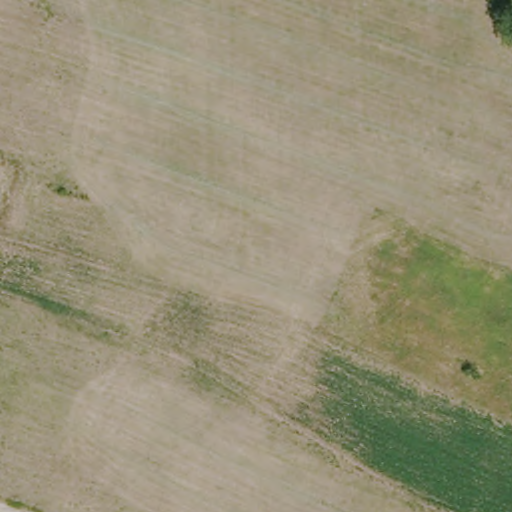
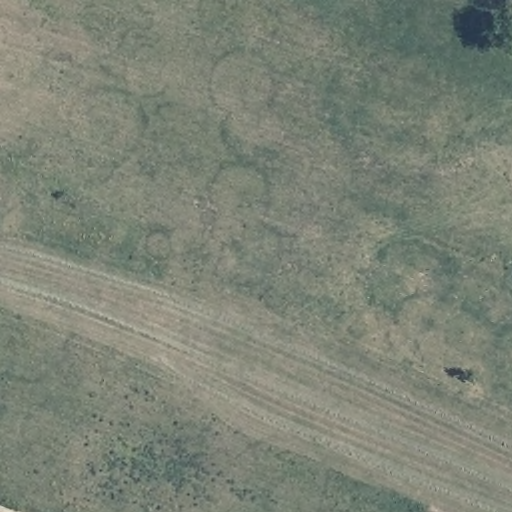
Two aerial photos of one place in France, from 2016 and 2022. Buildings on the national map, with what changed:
[]

